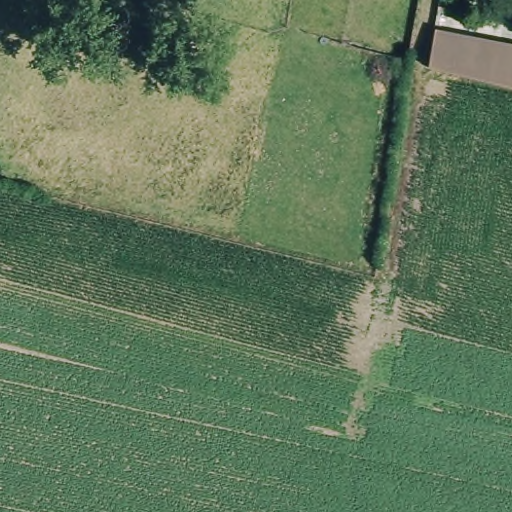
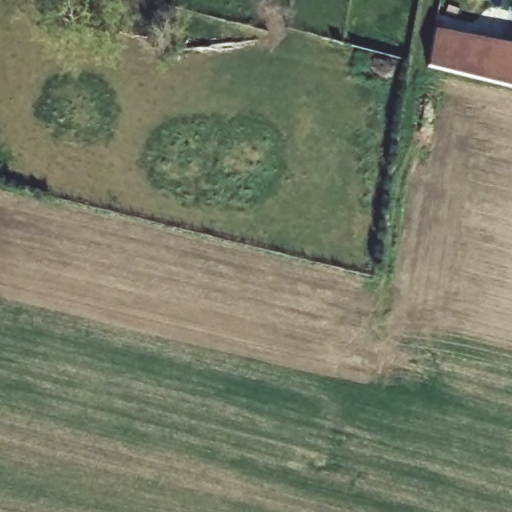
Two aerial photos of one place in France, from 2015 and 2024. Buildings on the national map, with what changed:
unchanged [(429,63),(435,29),(512,51),(512,85),(429,63)]

